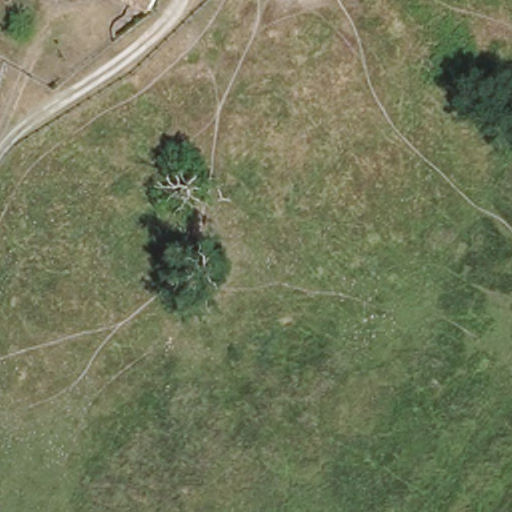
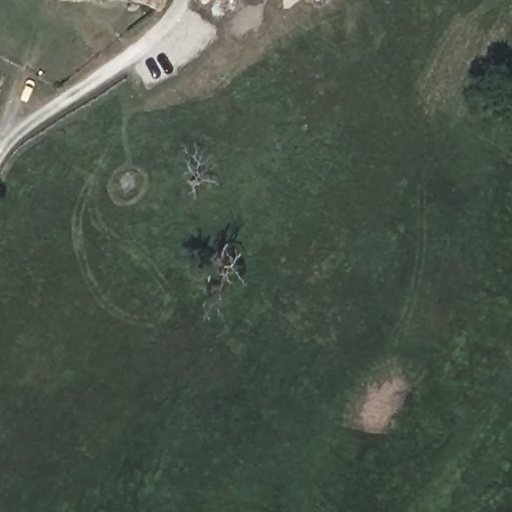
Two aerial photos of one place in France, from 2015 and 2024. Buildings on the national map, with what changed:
unchanged [(164,0),(159,11),(137,0),(164,0)]

